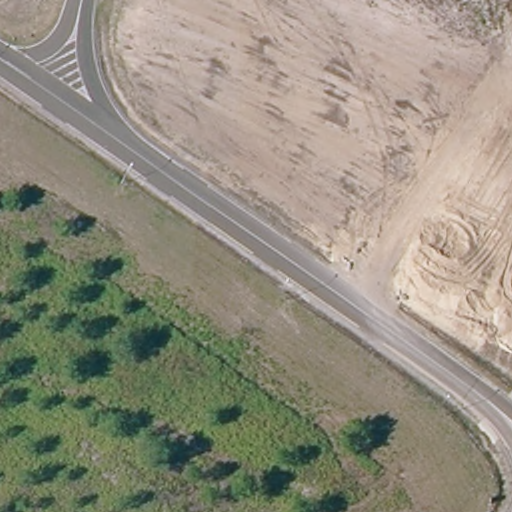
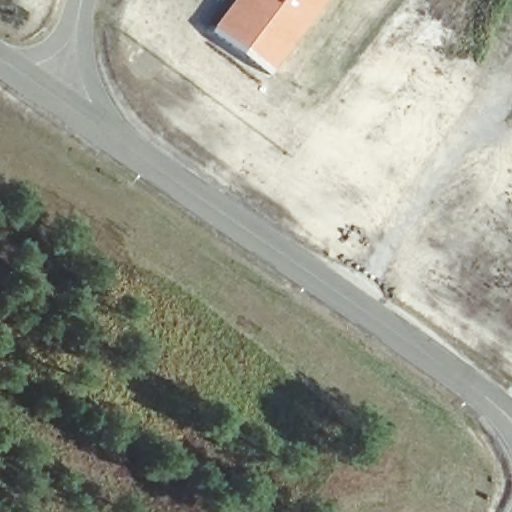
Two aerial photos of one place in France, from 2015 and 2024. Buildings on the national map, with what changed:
new [(232,0),(326,0),(271,73),(211,29),(232,0)]

